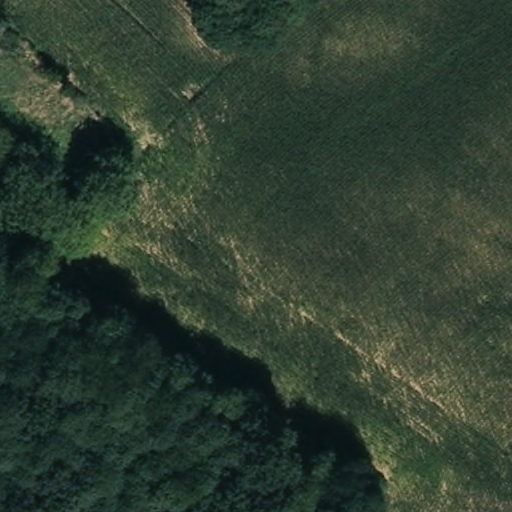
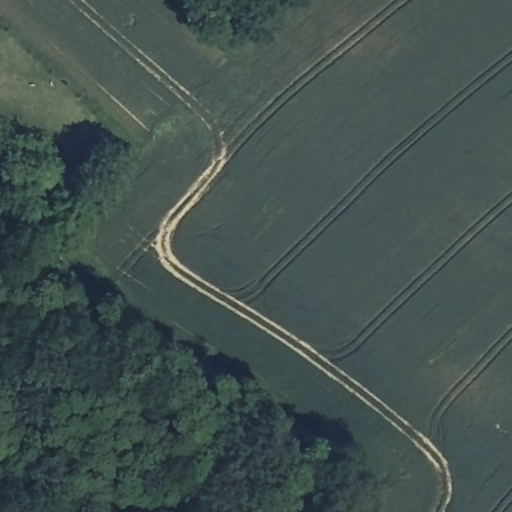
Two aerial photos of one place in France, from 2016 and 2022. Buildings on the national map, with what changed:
unchanged [(35,227),(24,217),(51,189),(61,199),(35,227)]

